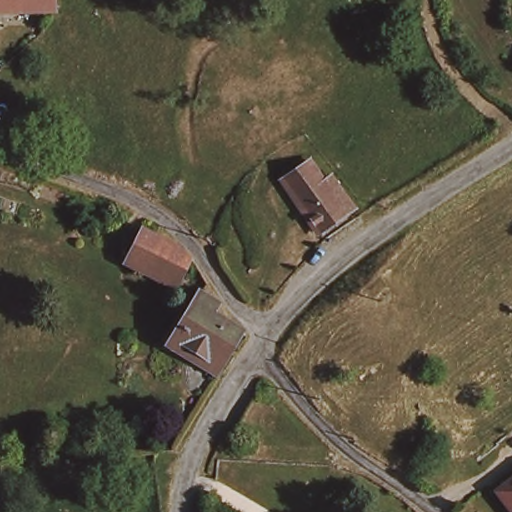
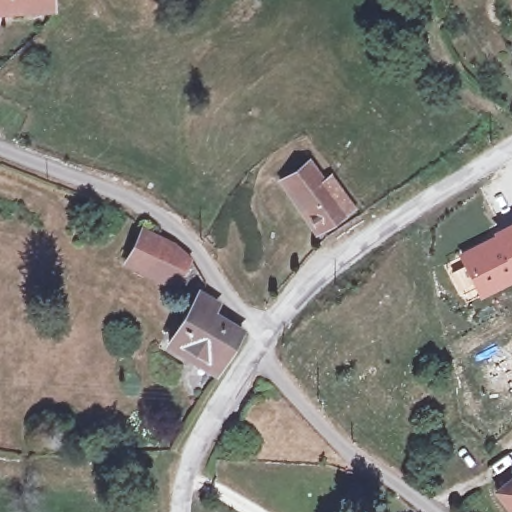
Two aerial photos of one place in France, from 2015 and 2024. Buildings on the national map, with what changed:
unchanged [(0,9),(0,0),(41,0),(42,9),(0,9)]
unchanged [(281,175),(297,164),(304,159),(319,180),(330,174),(342,200),(309,220),(281,175)]
new [(462,265),(456,254),(500,227),(512,220),(512,283),(480,301),(466,276),(460,279),(464,287),(457,290),(449,273),(462,265)]
unchanged [(132,257),(147,226),(179,252),(165,278),(132,257)]
unchanged [(167,342),(172,334),(200,289),(215,299),(212,305),(239,326),(217,359),(211,368),(167,342)]
unchanged [(272,422),(248,413),(257,392),(280,399),(272,422)]
unchanged [(512,474),(512,492),(504,480),(512,474)]

